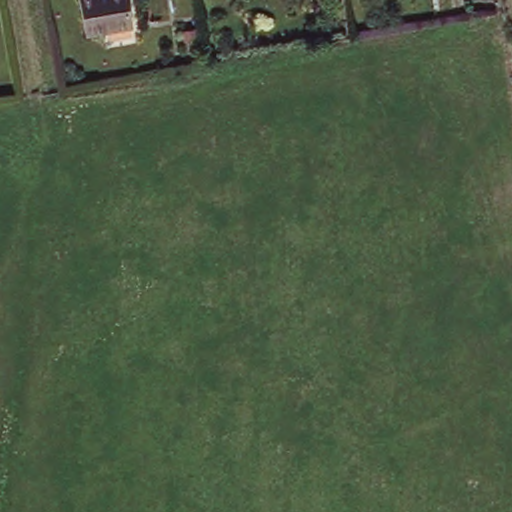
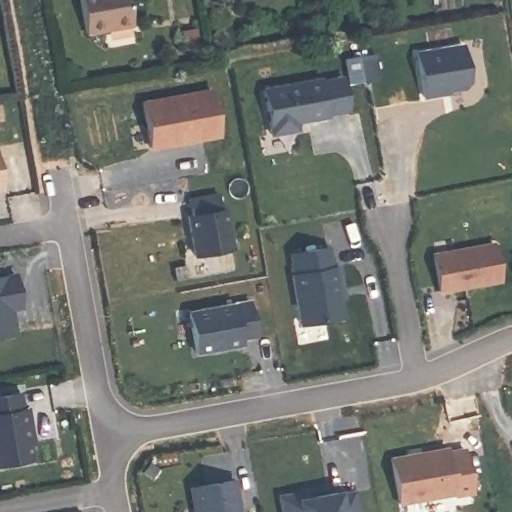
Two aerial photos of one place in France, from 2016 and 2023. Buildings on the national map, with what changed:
unchanged [(134,23),(90,33),(84,0),(130,0),(134,23)]
unchanged [(179,36),(182,57),(166,60),(165,40),(179,36)]
new [(466,42),(473,79),(467,89),(450,91),(451,95),(423,99),(415,50),(466,42)]
new [(323,77),(324,81),(344,77),(350,110),(329,114),(329,118),(300,123),(300,130),(270,136),(263,88),(323,77)]
new [(213,88),(221,137),(148,149),(141,101),(213,88)]
new [(4,190),(0,191),(0,169),(4,190)]
new [(192,216),(189,197),(216,193),(220,210),(229,208),(237,251),(192,259),(186,217),(192,216)]
new [(495,240),(502,283),(438,294),(431,252),(495,240)]
new [(297,276),(293,253),(325,247),(329,269),(337,268),(344,318),(300,326),(291,277),(297,276)]
new [(25,309),(13,311),(19,336),(0,339),(0,275),(17,273),(25,309)]
new [(259,335),(241,339),(243,347),(195,356),(187,311),(250,299),(259,335)]
new [(21,392),(24,408),(31,408),(37,445),(32,446),(35,462),(0,467),(0,395),(21,392)]
new [(449,451),(466,446),(475,493),(398,506),(389,456),(448,446),(449,451)]
new [(194,512),(190,488),(236,478),(241,512),(194,512)]
new [(309,490),(312,496),(340,490),(356,490),(360,512),(282,512),(279,495),(309,490)]

